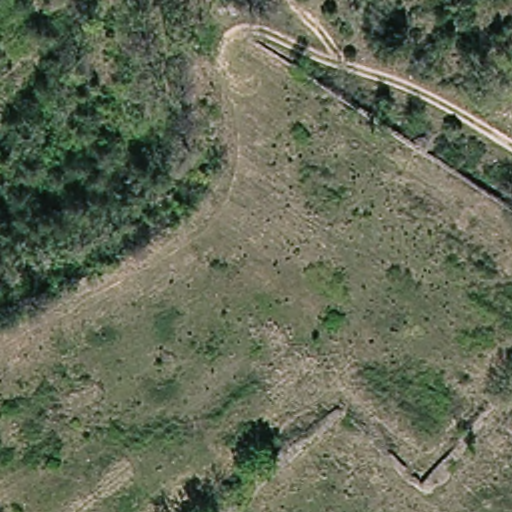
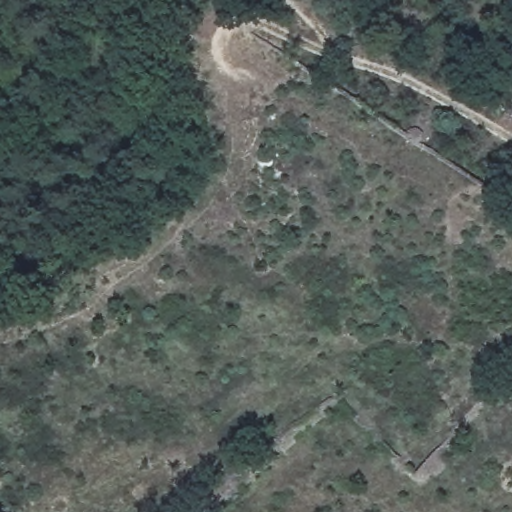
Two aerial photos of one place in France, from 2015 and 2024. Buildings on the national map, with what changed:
unchanged [(213,7),(205,34),(186,13),(197,0),(202,0),(213,7)]

